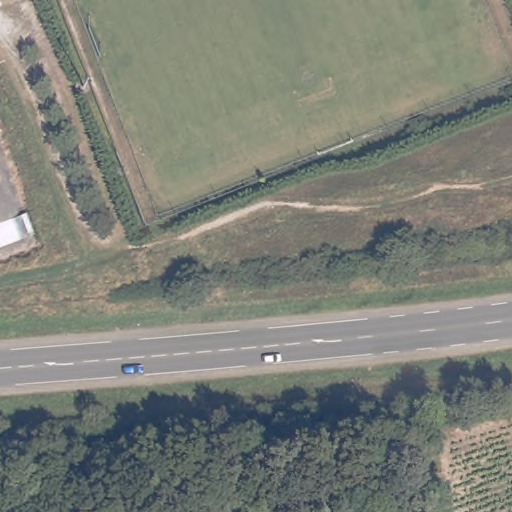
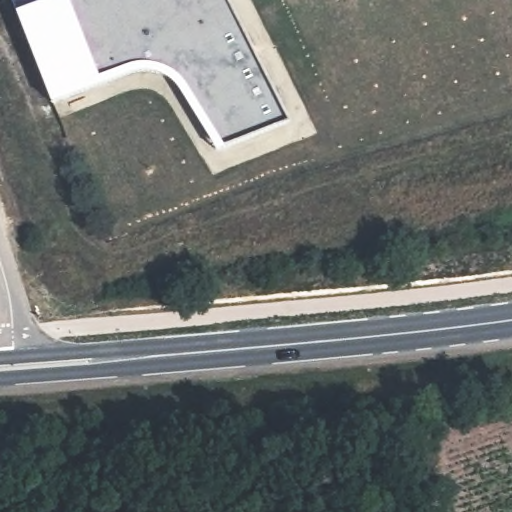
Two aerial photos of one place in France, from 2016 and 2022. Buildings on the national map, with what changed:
new [(216,151),(179,91),(169,80),(154,73),(139,71),(124,76),(50,105),(13,3),(21,0),(231,0),(292,122),(216,151)]

